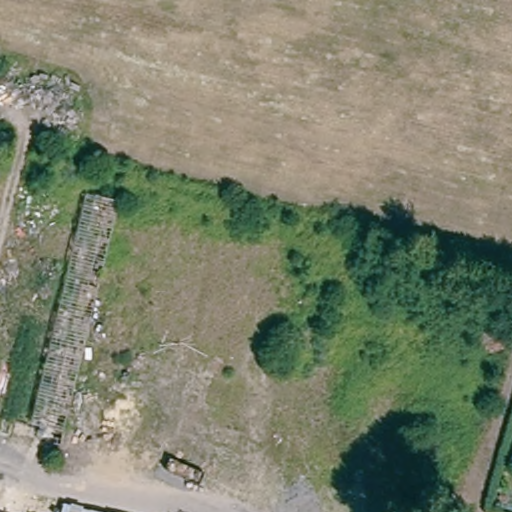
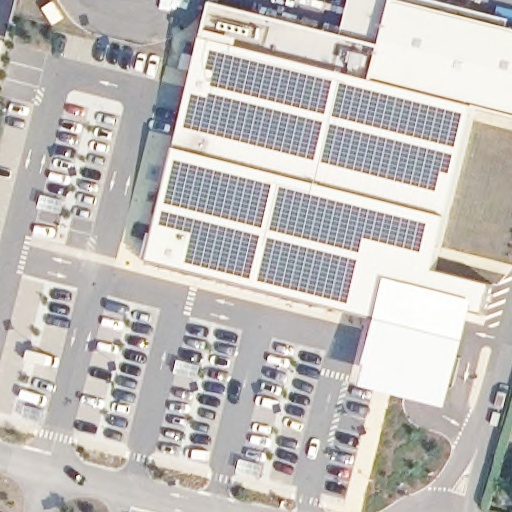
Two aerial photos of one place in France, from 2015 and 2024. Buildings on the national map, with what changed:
new [(479,105),(435,269),(493,283),(486,311),(475,310),(468,340),(452,407),(365,384),(382,317),(149,260),(216,1),(342,34),(352,0),(435,0),(512,19),(512,20),(509,26),(512,27),(512,115),(479,105)]

